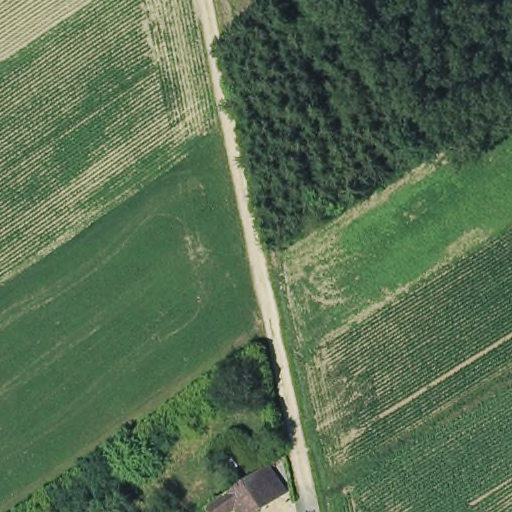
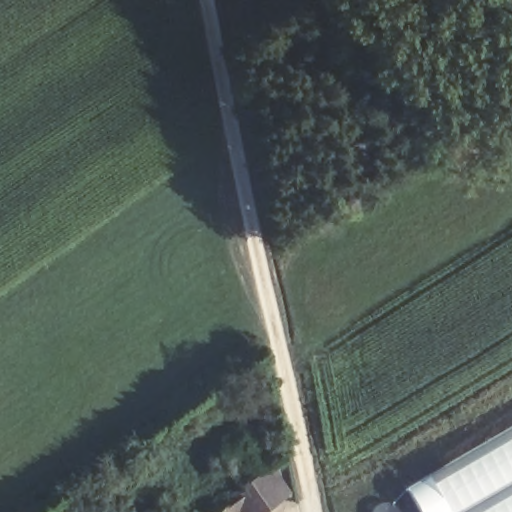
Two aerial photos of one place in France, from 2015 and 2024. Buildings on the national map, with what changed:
new [(428,474),(430,477),(461,461),(512,432),(512,512),(418,512),(403,488),(428,474)]
unchanged [(259,468),(265,464),(280,489),(275,492),(246,512),(242,512),(232,497),(229,499),(234,506),(226,512),(213,512),(207,504),(225,492),(259,468)]

